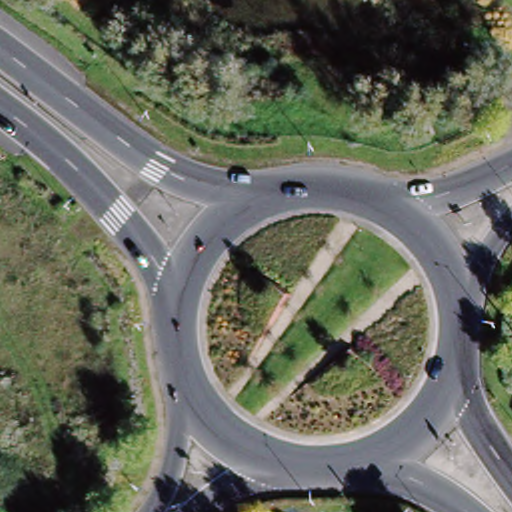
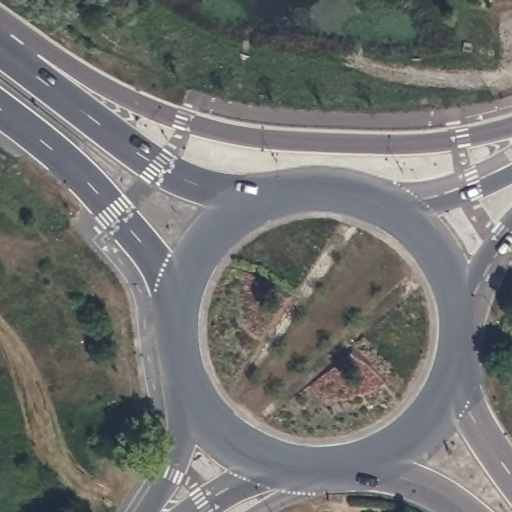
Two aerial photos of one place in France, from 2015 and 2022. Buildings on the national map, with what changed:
[]

